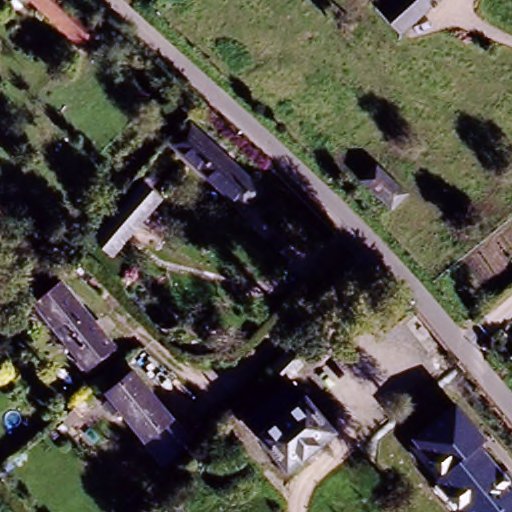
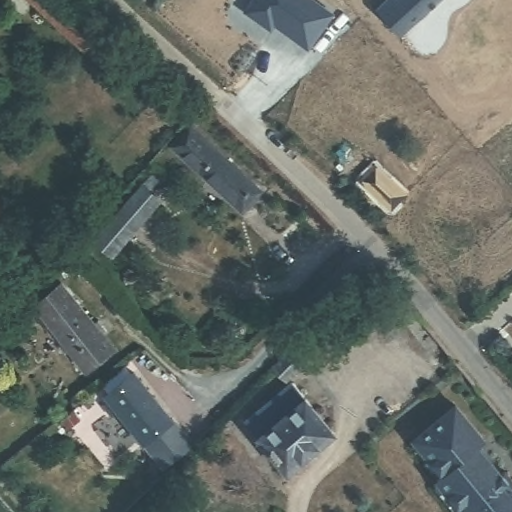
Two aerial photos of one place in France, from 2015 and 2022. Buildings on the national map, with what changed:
unchanged [(23,0),(62,0),(97,32),(80,51),(23,0)]
new [(265,26),(245,12),(254,0),(312,0),(333,15),(308,49),(269,21),(275,25),(271,30),(265,26)]
unchanged [(399,30),(376,4),(381,0),(435,0),(399,30)]
unchanged [(253,190),(237,207),(169,143),(185,126),(253,190)]
unchanged [(384,212),(353,182),(369,166),(398,196),(384,212)]
unchanged [(112,257),(93,240),(141,188),(160,206),(112,257)]
unchanged [(112,348),(85,370),(36,305),(64,284),(112,348)]
unchanged [(276,381),(263,367),(281,351),(294,363),(276,381)]
unchanged [(132,370),(170,420),(141,441),(105,391),(132,370)]
unchanged [(326,411),(331,417),(325,422),(333,434),(287,474),(257,438),(253,432),(252,426),(292,392),(300,392),(305,398),(314,392),(322,402),(314,409),(320,416),(326,411)]
unchanged [(481,446),(503,475),(508,472),(512,476),(512,512),(463,512),(437,479),(440,476),(412,439),(457,404),(487,440),(481,446)]

